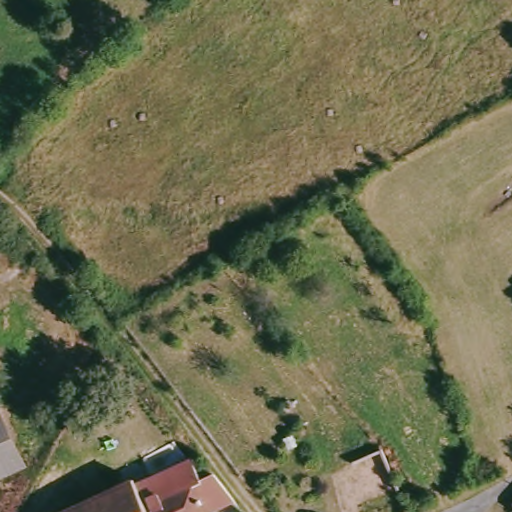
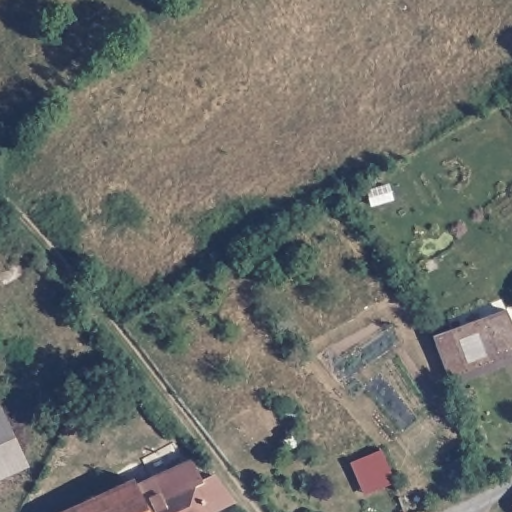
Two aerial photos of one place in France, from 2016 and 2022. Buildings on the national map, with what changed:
new [(505,309),(512,324),(512,353),(450,377),(434,335),(505,309)]
unchanged [(16,463),(0,471),(0,430),(16,463)]
new [(364,492),(351,461),(384,448),(394,480),(364,492)]
unchanged [(61,509),(128,477),(132,484),(184,459),(196,478),(206,472),(226,499),(201,512),(62,512),(61,509)]
unchanged [(512,506),(509,504),(512,502),(512,506)]

